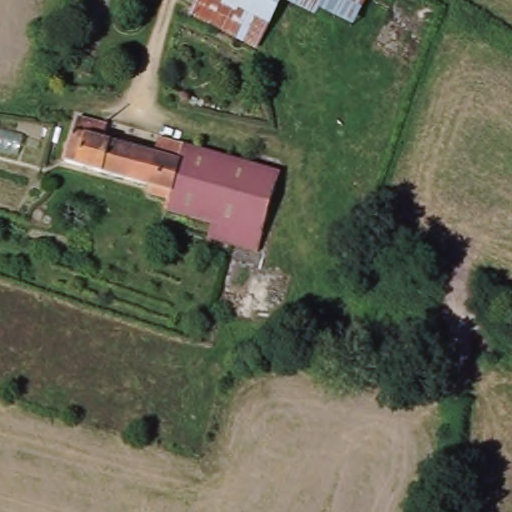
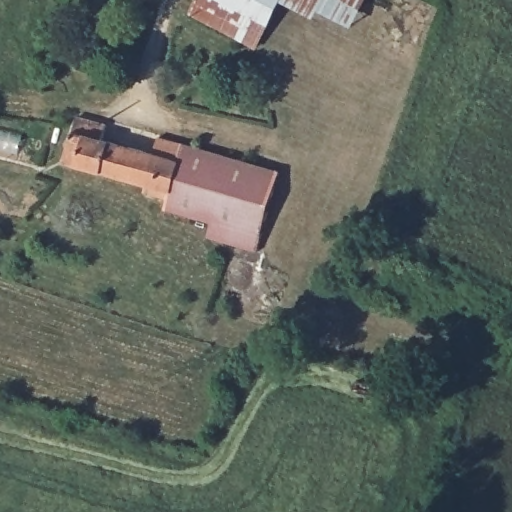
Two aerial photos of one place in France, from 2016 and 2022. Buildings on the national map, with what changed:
unchanged [(196,0),(278,0),(257,41),(192,7),(196,0)]
unchanged [(303,0),(364,0),(352,24),(303,0)]
unchanged [(103,120),(101,135),(173,155),(179,140),(278,165),(255,250),(237,246),(205,237),(210,220),(162,206),(165,189),(60,160),(72,111),(103,120)]

